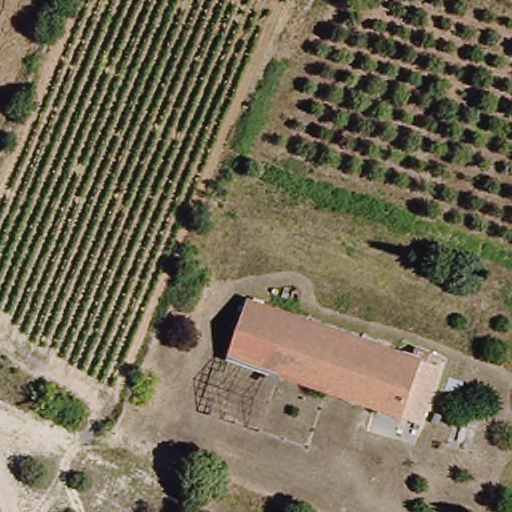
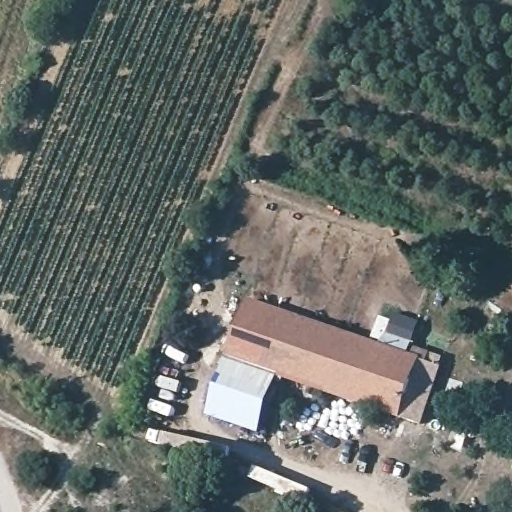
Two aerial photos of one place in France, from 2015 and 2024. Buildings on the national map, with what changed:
unchanged [(215,353),(237,293),(404,353),(410,343),(424,346),(420,357),(435,364),(411,426),(215,353)]
new [(207,417),(227,358),(280,377),(260,434),(207,417)]

